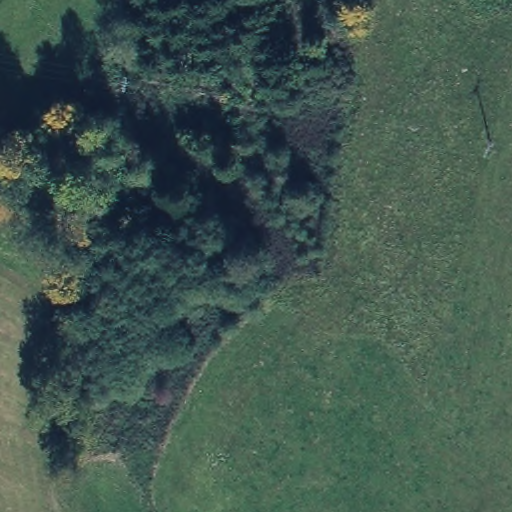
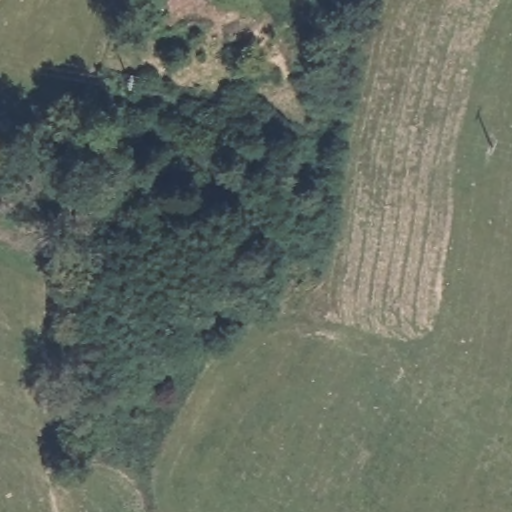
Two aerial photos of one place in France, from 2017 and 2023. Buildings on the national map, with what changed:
[]

